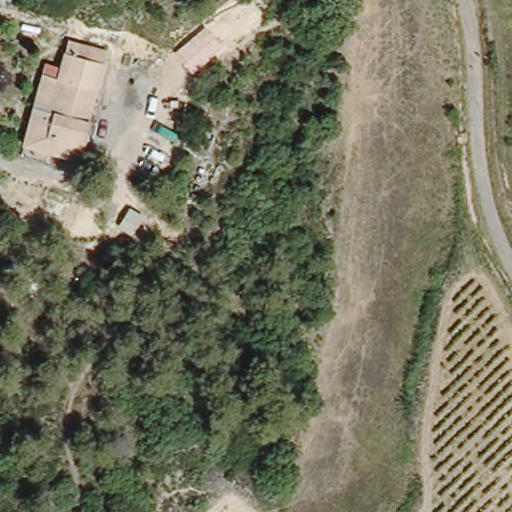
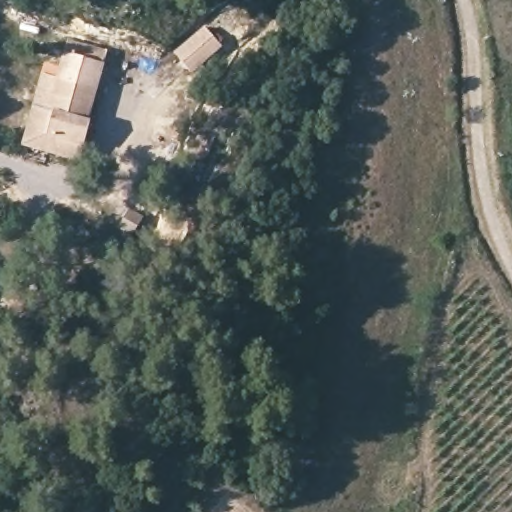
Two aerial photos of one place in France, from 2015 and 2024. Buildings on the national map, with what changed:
unchanged [(174,52),(206,26),(222,48),(193,72),(174,52)]
unchanged [(63,133),(48,169),(10,154),(38,86),(35,85),(50,48),(105,70),(85,123),(78,139),(63,133)]

